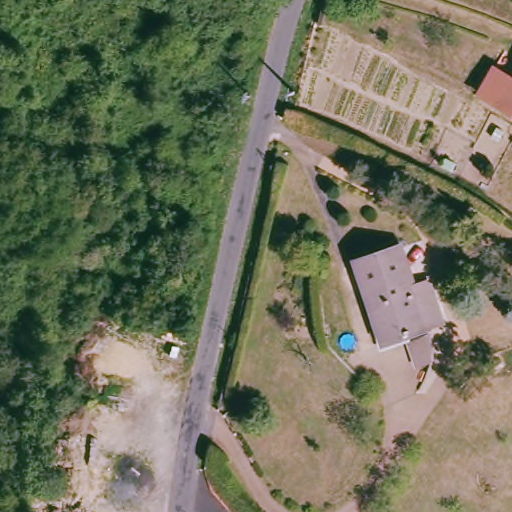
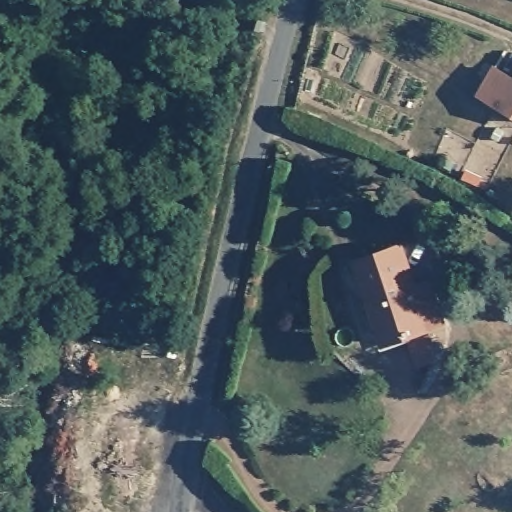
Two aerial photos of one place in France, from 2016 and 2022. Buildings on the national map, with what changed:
unchanged [(512,89),(512,115),(502,109),(512,89)]
unchanged [(416,289),(431,287),(440,327),(384,341),(362,261),(405,250),(416,289)]
unchanged [(428,338),(432,352),(423,367),(413,368),(407,344),(428,338)]

